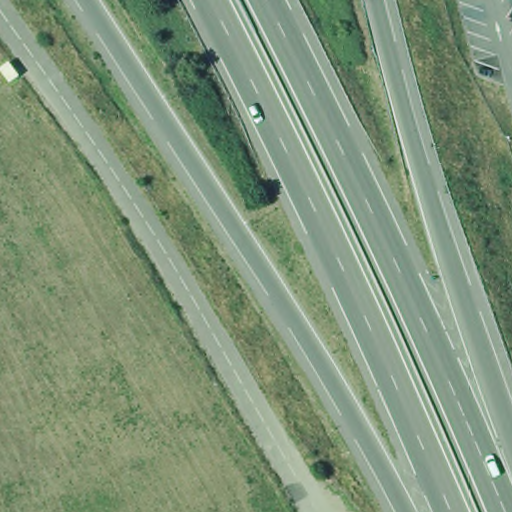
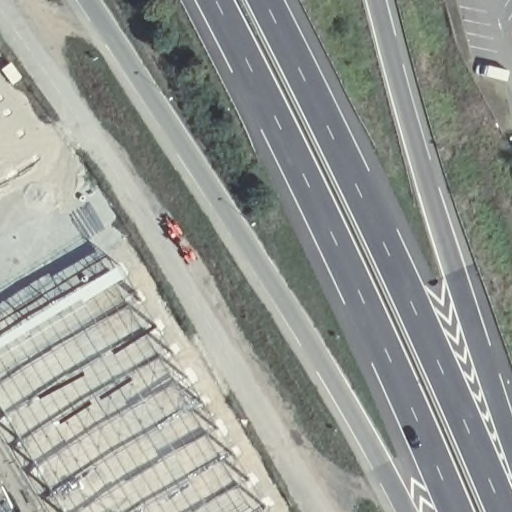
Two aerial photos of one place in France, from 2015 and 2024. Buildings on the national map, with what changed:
new [(0,185),(0,93),(40,161),(0,185)]
new [(61,512),(0,411),(0,337),(120,265),(271,512),(61,512)]

